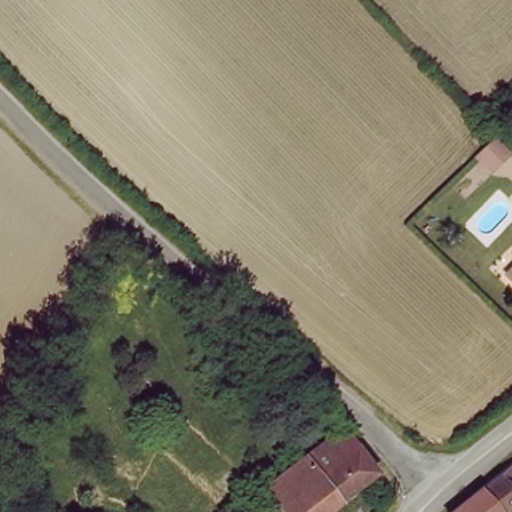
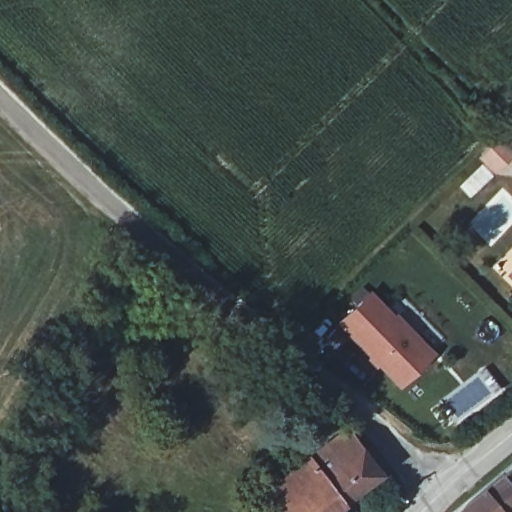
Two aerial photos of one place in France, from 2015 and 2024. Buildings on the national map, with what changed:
unchanged [(495,139),(511,155),(494,171),(478,155),(495,139)]
unchanged [(512,268),(512,279),(506,273),(512,268)]
new [(435,352),(401,386),(337,324),(372,290),(435,352)]
unchanged [(343,420),(380,451),(383,455),(337,505),(298,470),(343,420)]
unchanged [(512,467),(512,509),(509,512),(456,512),(512,467)]
unchanged [(336,512),(298,512),(302,507),(281,488),(298,470),(337,505),(336,512)]

